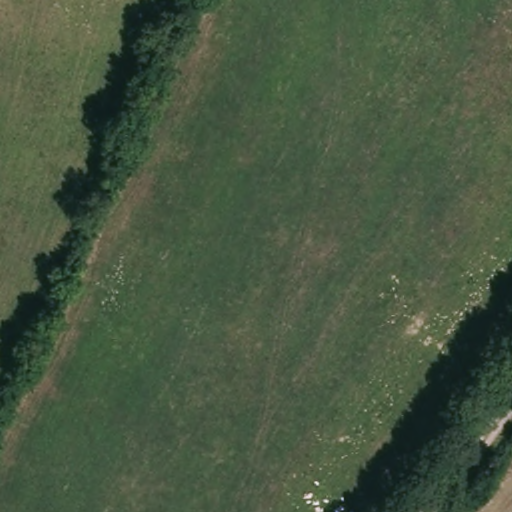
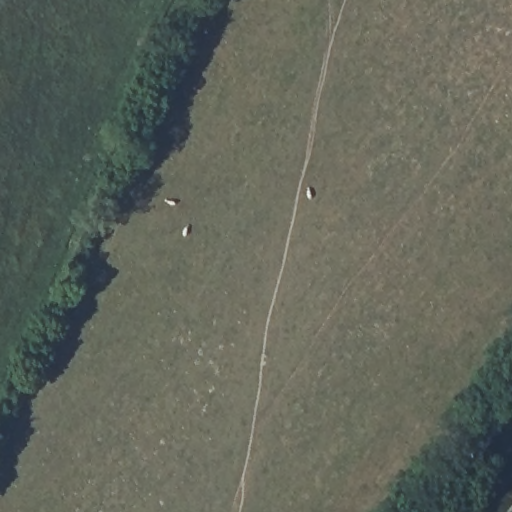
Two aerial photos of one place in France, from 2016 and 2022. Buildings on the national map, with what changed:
[]

